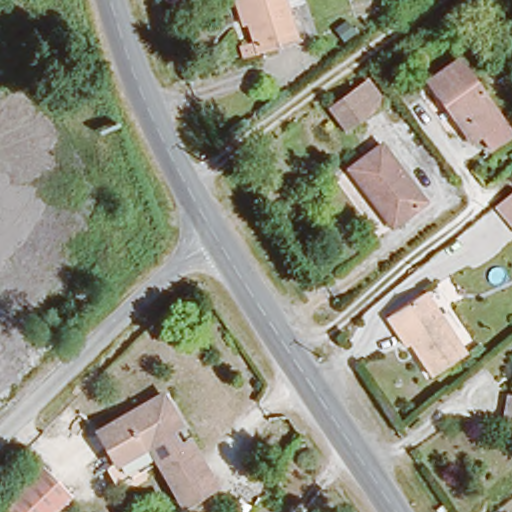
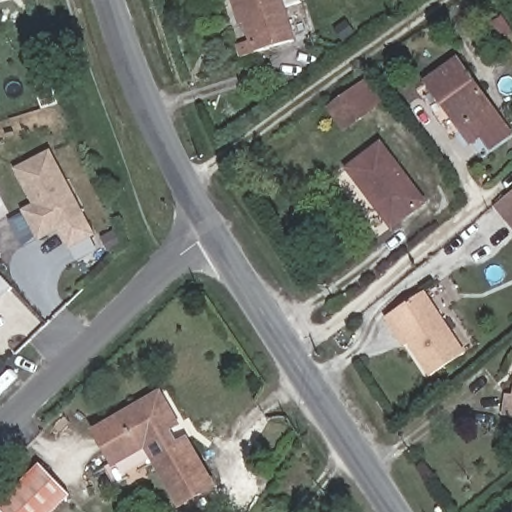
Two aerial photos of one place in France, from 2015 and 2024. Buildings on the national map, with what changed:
unchanged [(291,32),(255,43),(246,16),(239,18),(234,0),(281,0),(291,32)]
unchanged [(493,142),(483,128),(471,136),(430,74),(459,55),(501,116),(510,128),(493,142)]
unchanged [(329,104),(353,87),(366,78),(380,97),(367,106),(342,123),(329,104)]
unchanged [(373,191),(368,195),(349,166),(382,143),(421,200),(393,220),(373,191)]
new [(16,169),(50,153),(81,217),(37,239),(24,211),(35,206),(16,169)]
unchanged [(512,194),(512,236),(492,208),(512,194)]
unchanged [(433,373),(410,341),(390,314),(420,292),(465,350),(433,373)]
unchanged [(504,392),(510,393),(512,385),(512,412),(501,409),(504,392)]
unchanged [(161,393),(205,464),(215,480),(184,497),(147,437),(117,456),(109,443),(101,429),(146,402),(161,393)]
unchanged [(40,472),(42,475),(62,498),(48,512),(4,512),(0,509),(40,472)]

